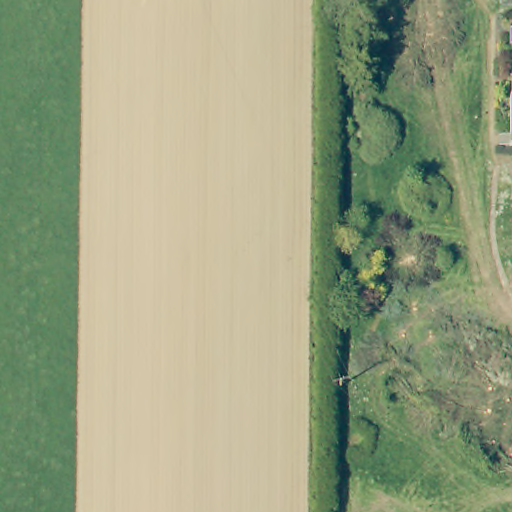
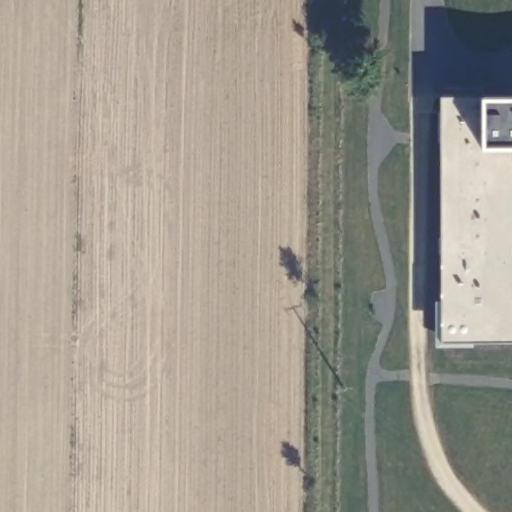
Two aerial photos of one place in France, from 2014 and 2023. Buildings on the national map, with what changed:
demolished [(512,27),(512,44),(511,44),(511,27),(512,27)]
new [(440,95),(482,97),(512,97),(512,339),(440,338),(440,95)]

